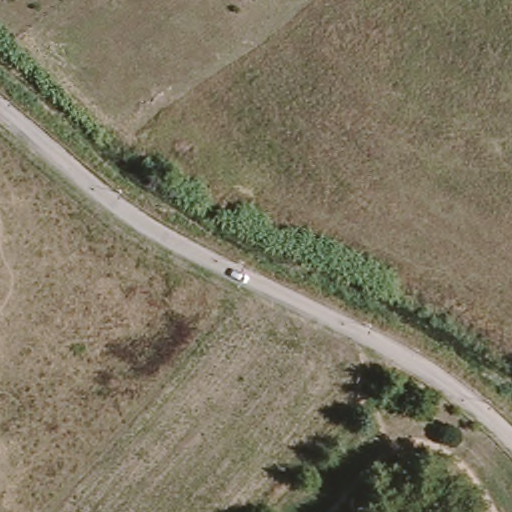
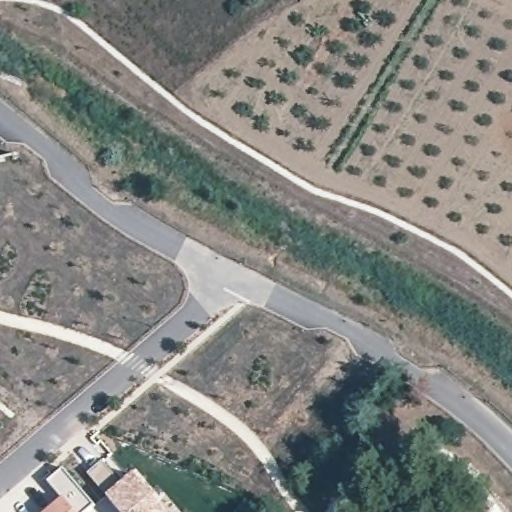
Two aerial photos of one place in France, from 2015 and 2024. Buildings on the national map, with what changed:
demolished [(344,68),(334,56),(348,46),(357,59),(344,68)]
new [(104,462),(122,484),(135,473),(166,512),(120,512),(109,499),(88,475),(104,462)]
new [(63,500),(49,482),(64,469),(94,504),(83,512),(50,512),(63,500)]

